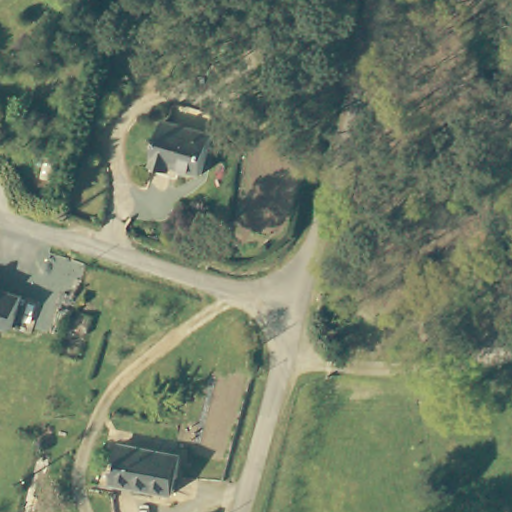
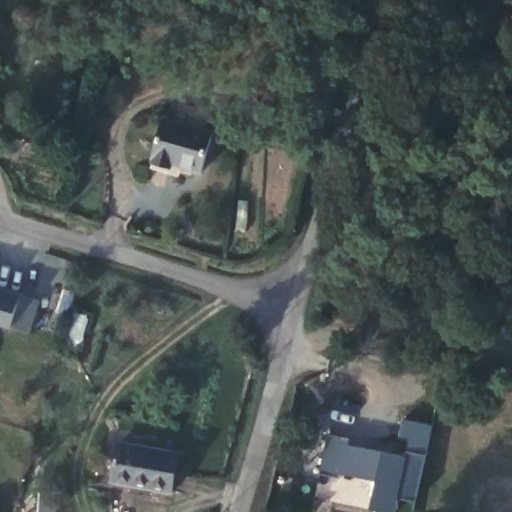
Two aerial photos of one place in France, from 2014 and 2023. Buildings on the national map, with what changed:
unchanged [(175,168),(155,163),(167,122),(216,135),(207,170),(176,164),(175,168)]
unchanged [(14,329),(0,325),(0,285),(24,292),(14,329)]
new [(400,500),(398,512),(385,512),(372,510),(377,481),(341,474),(340,479),(320,475),(327,435),(348,440),(346,446),(406,458),(408,440),(398,438),(403,420),(433,426),(417,503),(400,500)]
unchanged [(120,442),(180,454),(173,491),(113,482),(120,442)]

